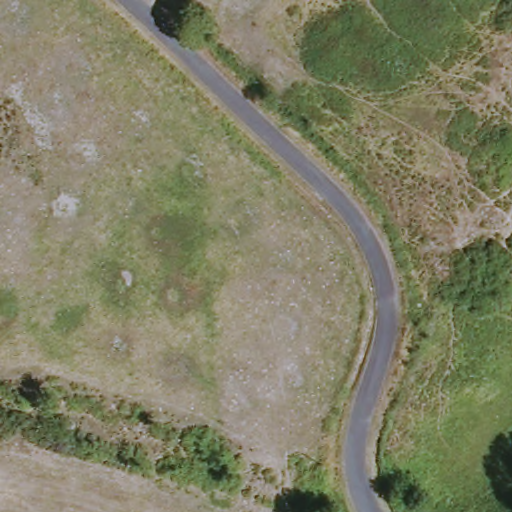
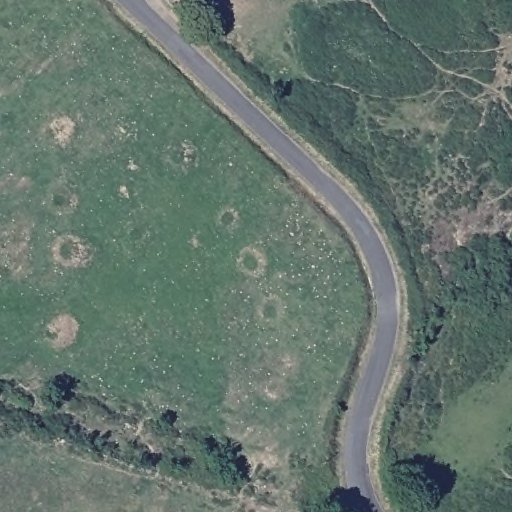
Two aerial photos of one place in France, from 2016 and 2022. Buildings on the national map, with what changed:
[]

